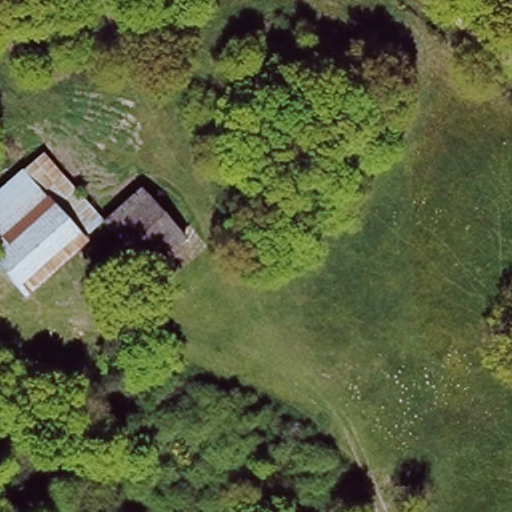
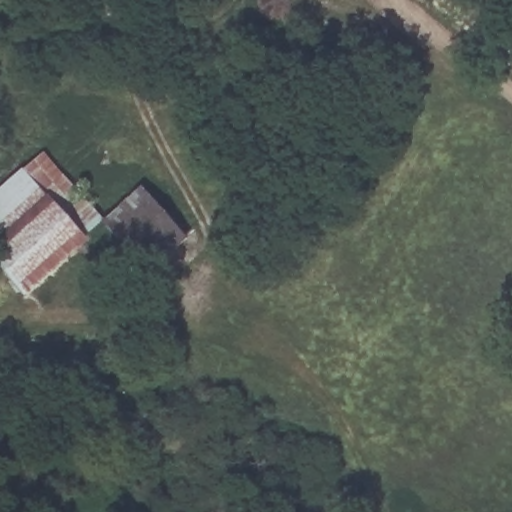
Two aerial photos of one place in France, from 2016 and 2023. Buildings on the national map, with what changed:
unchanged [(26,297),(0,269),(0,186),(42,149),(102,221),(26,297)]
unchanged [(140,185),(190,240),(153,271),(102,221),(140,185)]

